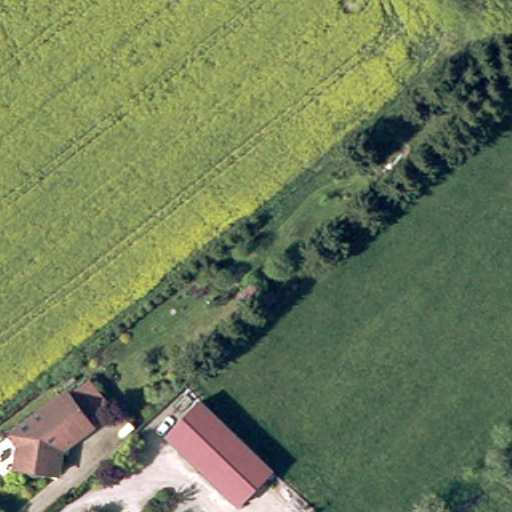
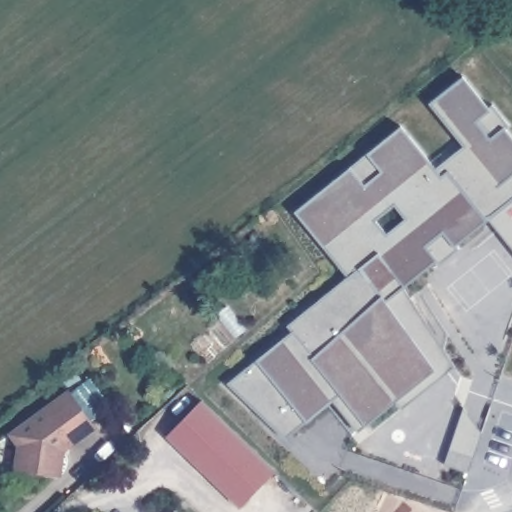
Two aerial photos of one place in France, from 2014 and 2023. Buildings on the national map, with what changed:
new [(436,170),(461,146),(428,105),(462,77),(512,133),(512,200),(486,222),(388,308),(436,372),(394,402),(366,428),(337,397),(293,432),(260,402),(254,408),(229,384),(293,333),(288,327),(347,277),(297,212),(400,128),(436,170)]
unchanged [(56,476),(14,469),(18,447),(9,434),(66,393),(90,428),(62,449),(60,448),(59,456),(56,476)]
unchanged [(249,443),(214,480),(163,429),(198,393),(249,443)]
new [(464,407),(483,433),(474,458),(469,473),(444,465),(449,450),(464,407)]
unchanged [(214,480),(249,443),(270,465),(234,501),(214,480)]

